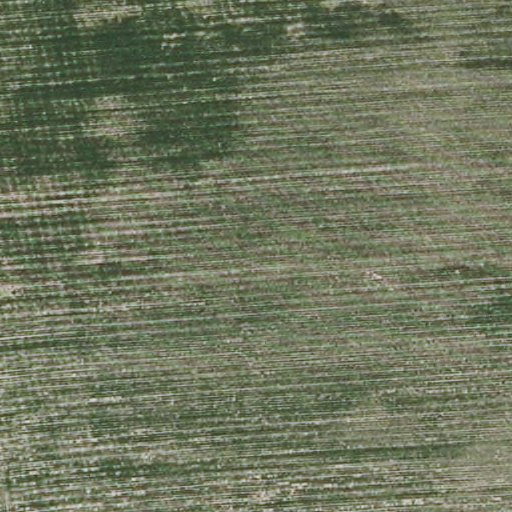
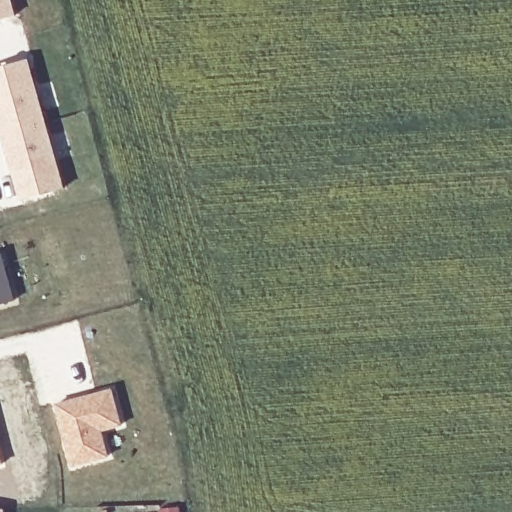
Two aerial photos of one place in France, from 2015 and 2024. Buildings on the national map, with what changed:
new [(0,19),(0,0),(9,0),(13,15),(0,19)]
new [(0,67),(25,60),(61,188),(21,199),(0,125),(0,67)]
new [(15,299),(0,303),(0,251),(1,251),(15,299)]
new [(112,386),(123,425),(104,430),(110,457),(70,468),(55,403),(112,386)]
new [(0,464),(0,447),(5,463),(0,464)]
new [(181,512),(161,512),(160,507),(180,505),(181,512)]

